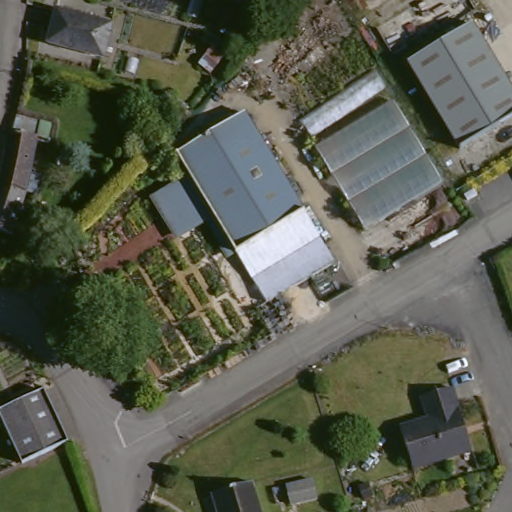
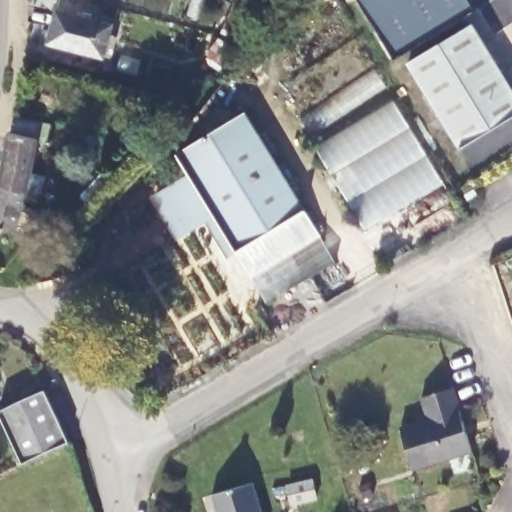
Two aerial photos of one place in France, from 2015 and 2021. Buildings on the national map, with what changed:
new [(362,0),(470,0),(475,9),(395,57),(362,0)]
unchanged [(107,29),(101,60),(48,47),(53,16),(107,29)]
unchanged [(479,22),(512,83),(512,119),(461,147),(413,57),(479,22)]
unchanged [(436,188),(358,232),(311,145),(389,101),(436,188)]
unchanged [(156,192),(189,174),(178,151),(196,141),(248,112),(318,241),(250,280),(213,218),(181,238),(156,192)]
unchanged [(13,137),(14,118),(43,126),(39,141),(27,193),(1,186),(13,137)]
unchanged [(0,238),(0,191),(1,186),(27,193),(22,221),(12,243),(0,238)]
unchanged [(250,280),(318,241),(335,269),(309,285),(308,285),(263,307),(250,280)]
unchanged [(413,472),(401,432),(427,425),(420,400),(454,389),(473,454),(413,472)]
unchanged [(0,433),(0,415),(42,395),(62,446),(15,467),(0,433)]
unchanged [(309,477),(314,500),(287,506),(281,484),(309,477)]
unchanged [(257,512),(213,512),(209,498),(248,486),(257,512)]

